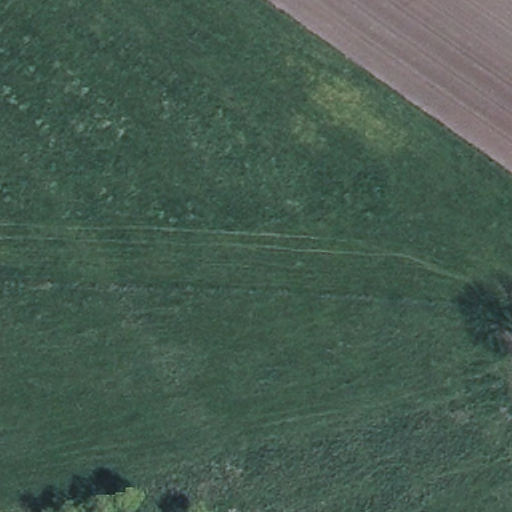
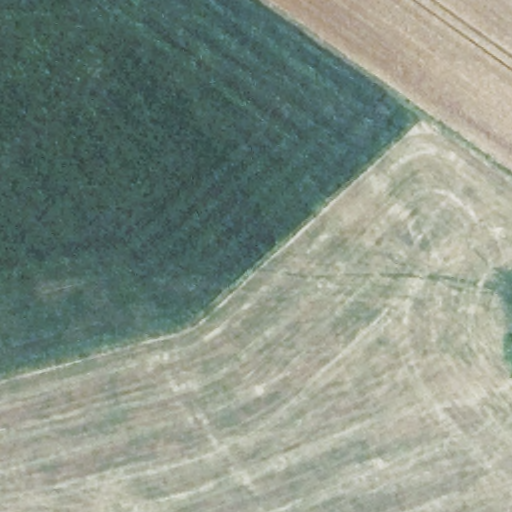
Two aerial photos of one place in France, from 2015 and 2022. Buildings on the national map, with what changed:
[]

